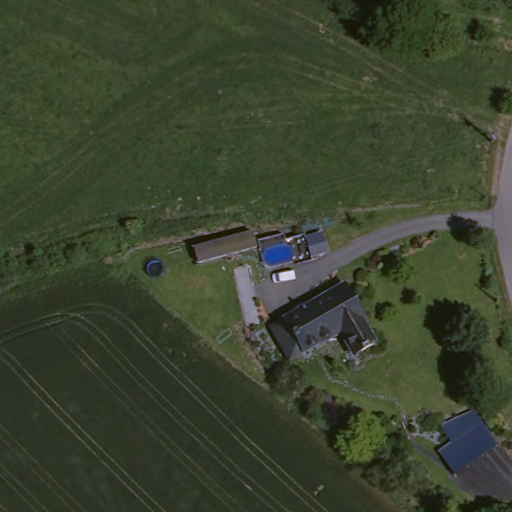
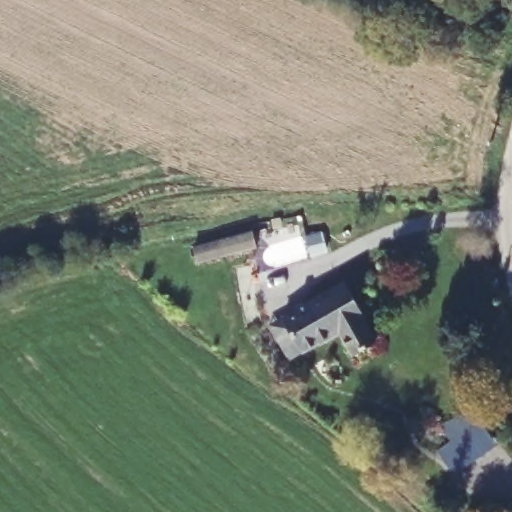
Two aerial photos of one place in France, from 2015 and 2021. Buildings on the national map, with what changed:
unchanged [(282,318),(295,310),(354,277),(374,311),(370,314),(382,335),(362,348),(349,326),(315,346),(302,355),(282,318)]
unchanged [(472,420),(488,450),(460,463),(458,464),(442,435),(458,426),(472,420)]

